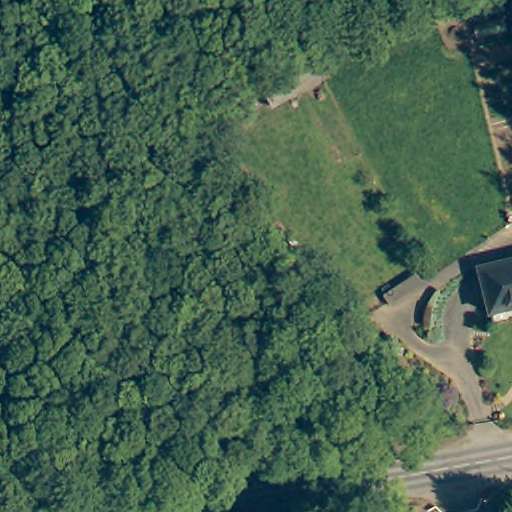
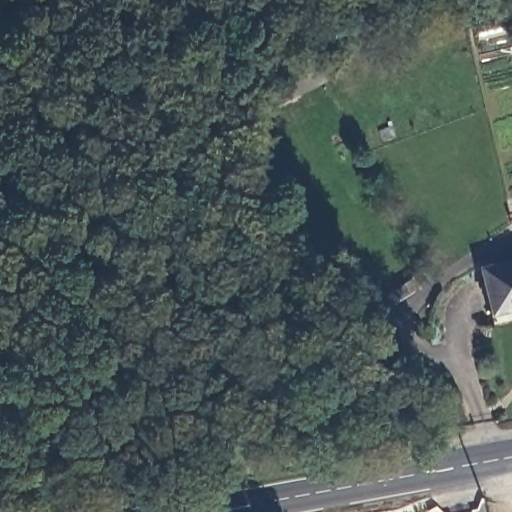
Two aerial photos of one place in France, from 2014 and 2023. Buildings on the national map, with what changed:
unchanged [(497,314),(486,267),(512,260),(512,310),(497,314)]

